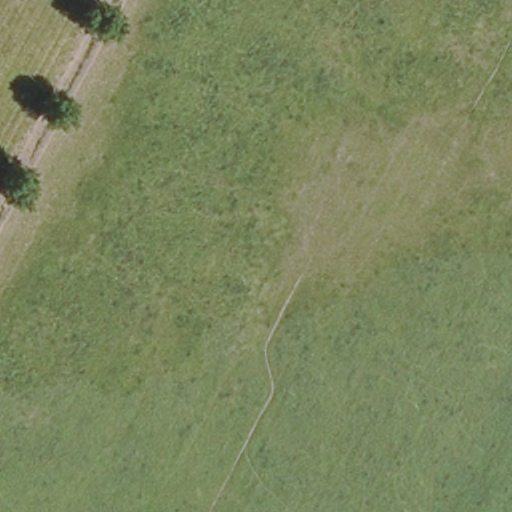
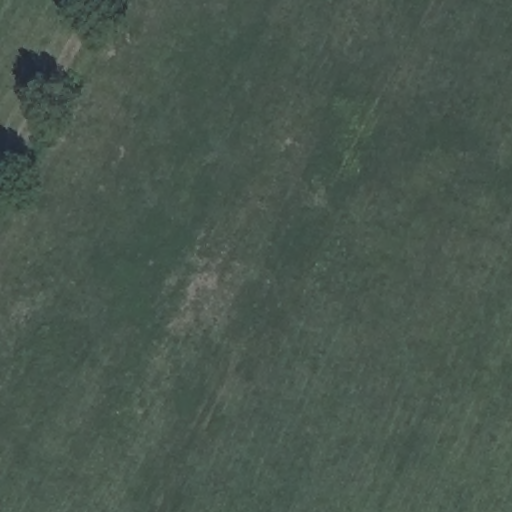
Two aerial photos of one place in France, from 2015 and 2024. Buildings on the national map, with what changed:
[]

